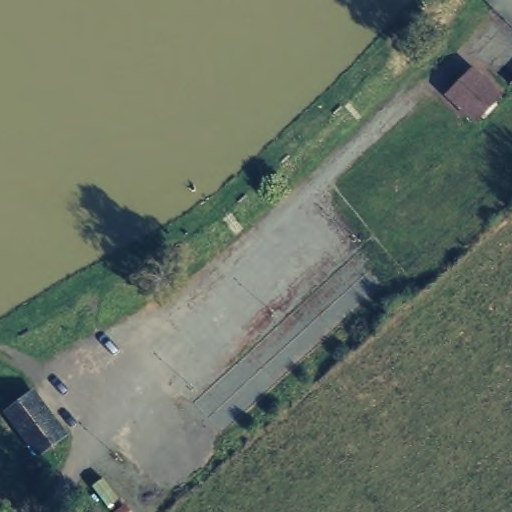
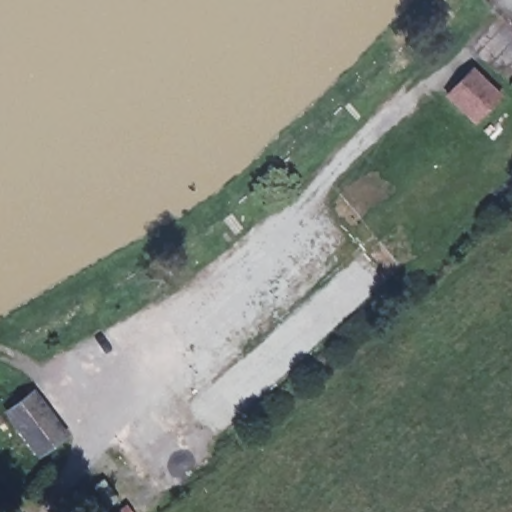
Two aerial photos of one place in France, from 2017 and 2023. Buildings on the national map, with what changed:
unchanged [(434,107),(463,82),(489,109),(461,135),(434,107)]
unchanged [(32,387),(66,427),(35,451),(5,412),(32,387)]

